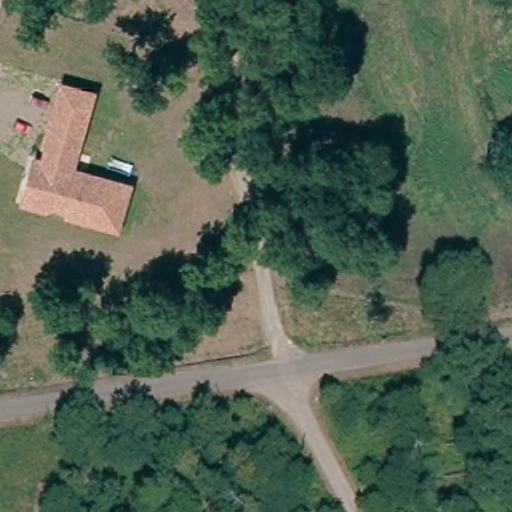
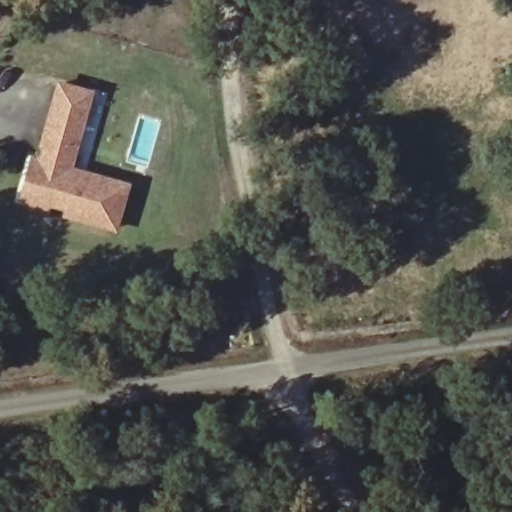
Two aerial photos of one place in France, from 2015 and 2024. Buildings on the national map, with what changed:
unchanged [(57,81),(96,90),(75,169),(134,184),(119,235),(64,219),(66,211),(54,207),(45,214),(19,205),(32,157),(40,159),(42,149),(38,146),(57,81)]

